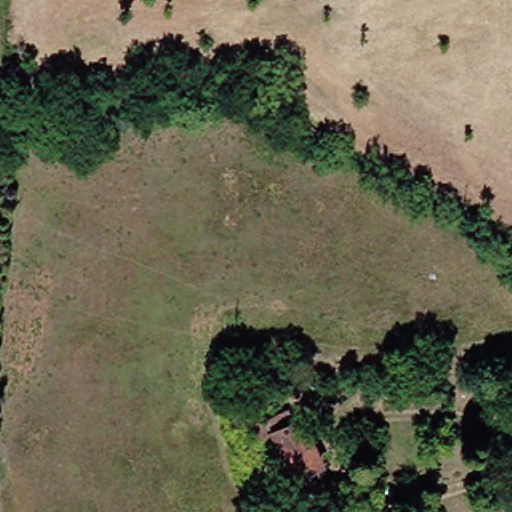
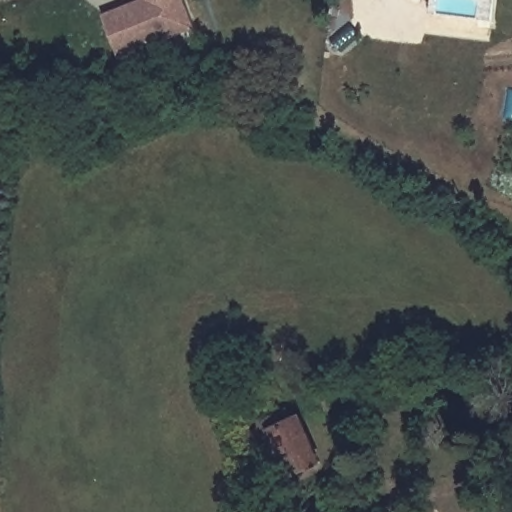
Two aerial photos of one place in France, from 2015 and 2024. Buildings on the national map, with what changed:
new [(143,0),(182,0),(193,31),(120,59),(104,17),(120,10),(143,1),(143,0)]
new [(432,2),(432,0),(440,0),(440,2),(432,2)]
new [(477,20),(480,0),(496,0),(492,22),(477,20)]
unchanged [(257,423),(268,419),(275,429),(297,418),(303,431),(311,428),(330,470),(303,482),(290,456),(276,462),(268,449),(262,451),(257,423)]

